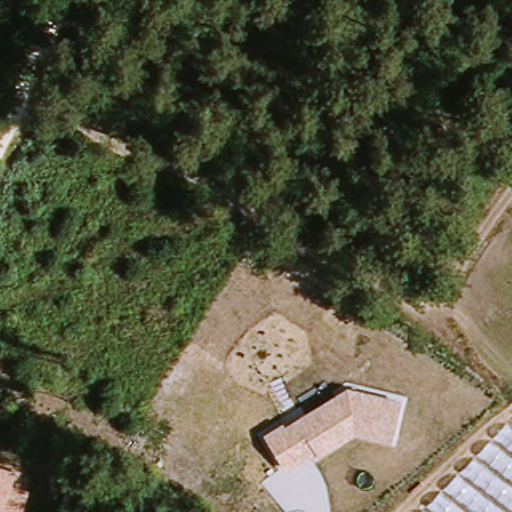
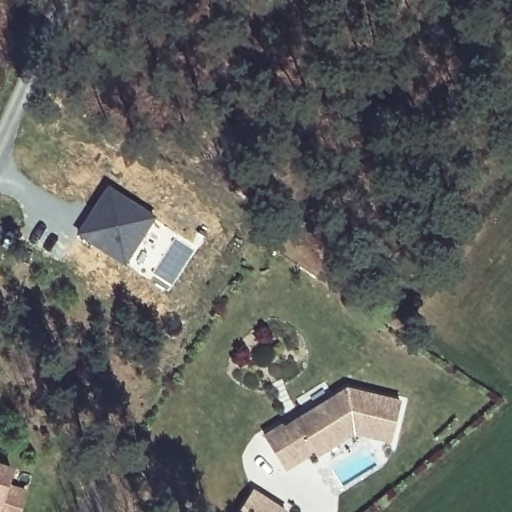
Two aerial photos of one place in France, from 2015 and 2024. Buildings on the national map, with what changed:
new [(109,186),(158,217),(127,265),(78,235),(109,186)]
unchanged [(284,428),(348,388),(405,400),(393,444),(356,437),(318,459),(315,453),(285,470),(264,434),(283,423),(284,428)]
demolished [(507,424),(512,428),(512,512),(423,512),(507,424)]
unchanged [(15,473),(4,512),(0,512),(0,468),(15,473)]
unchanged [(29,490),(23,512),(4,512),(13,484),(29,490)]
new [(254,492),(285,512),(241,512),(254,492)]

